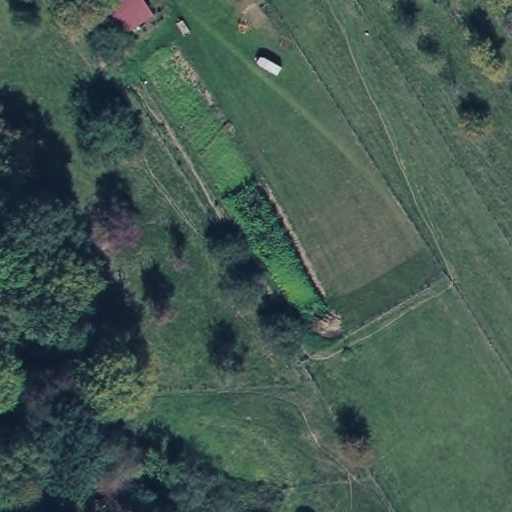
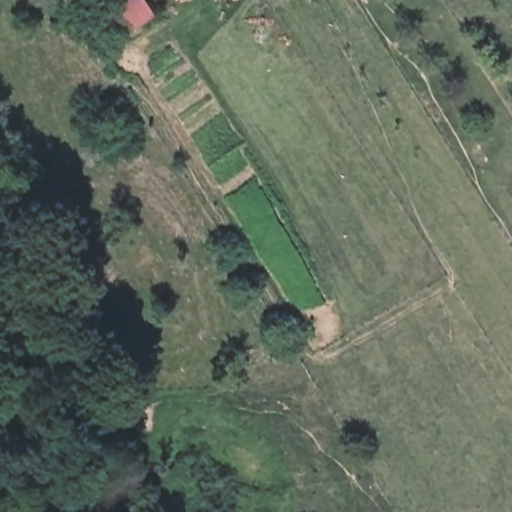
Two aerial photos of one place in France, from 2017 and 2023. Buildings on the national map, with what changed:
unchanged [(118,42),(100,11),(116,0),(145,0),(156,18),(118,42)]

